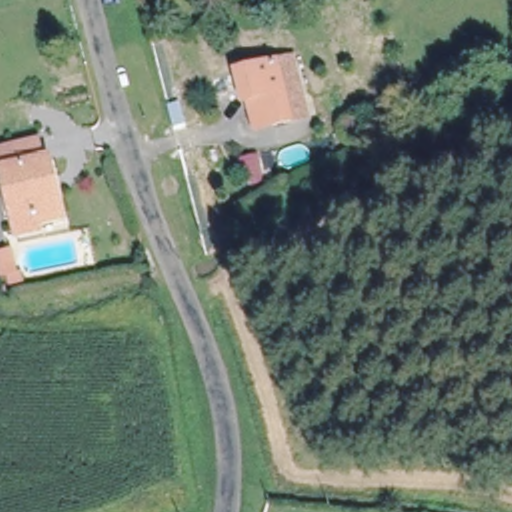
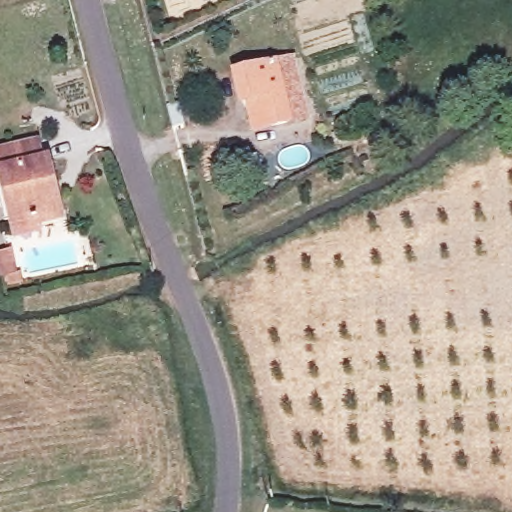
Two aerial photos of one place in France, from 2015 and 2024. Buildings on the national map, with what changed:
unchanged [(270,128),(268,122),(250,127),(236,74),(278,65),(292,122),(270,128)]
unchanged [(16,232),(3,176),(0,176),(0,153),(42,143),(46,161),(52,160),(66,221),(44,226),(46,235),(18,240),(16,232)]

